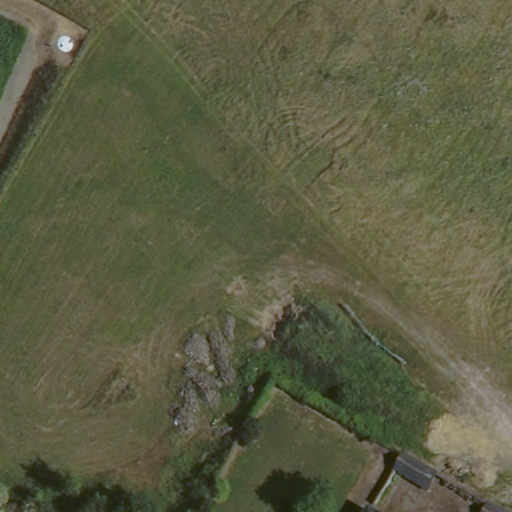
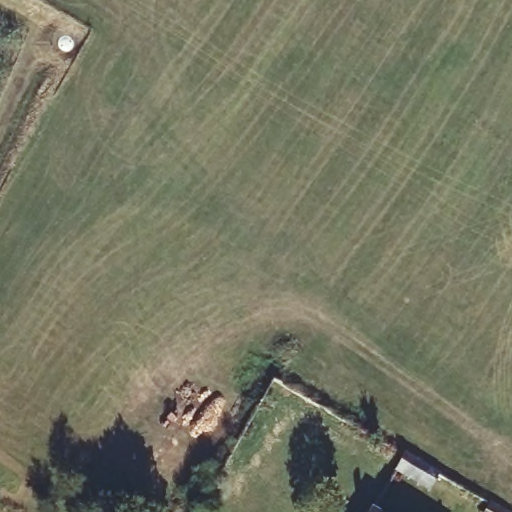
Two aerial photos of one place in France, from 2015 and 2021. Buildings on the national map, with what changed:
unchanged [(435,472),(423,492),(392,471),(402,453),(435,472)]
unchanged [(505,512),(486,512),(491,504),(505,512)]
unchanged [(374,512),(365,512),(367,508),(374,512)]

